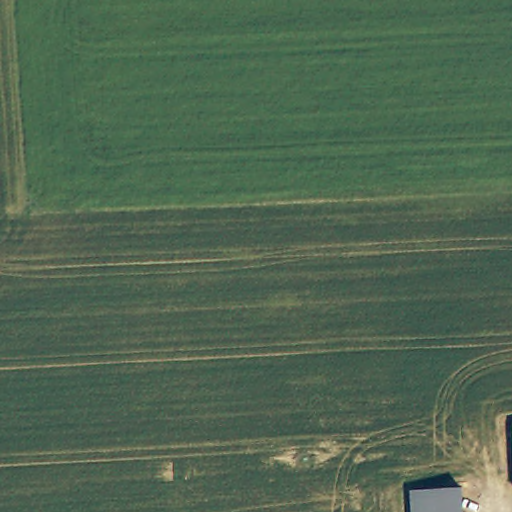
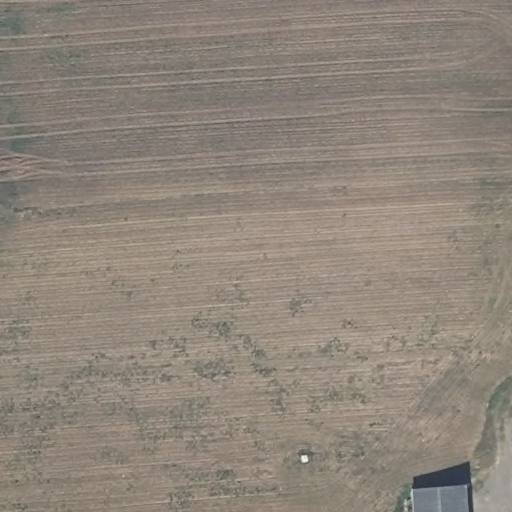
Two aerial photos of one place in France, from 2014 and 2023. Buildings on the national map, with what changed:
unchanged [(414,512),(413,495),(463,492),(464,512),(414,512)]

